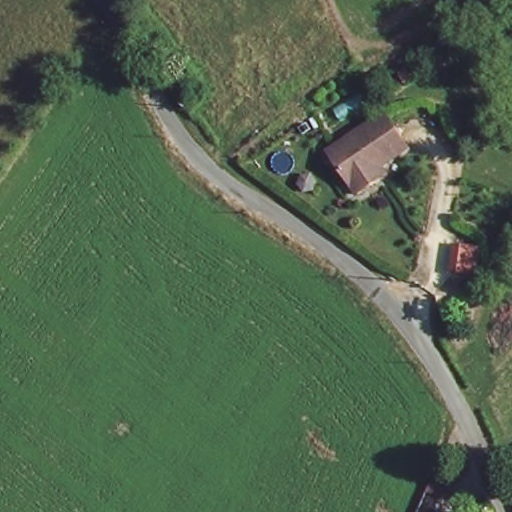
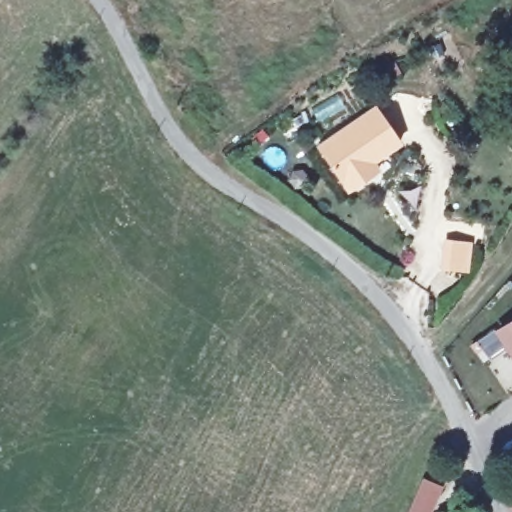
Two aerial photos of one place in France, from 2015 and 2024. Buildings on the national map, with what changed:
unchanged [(367,174),(348,186),(318,139),(375,102),(398,140),(374,155),(380,165),(367,174)]
new [(512,360),(494,331),(512,317),(512,360)]
unchanged [(512,500),(512,512),(511,512),(507,503),(512,500)]

